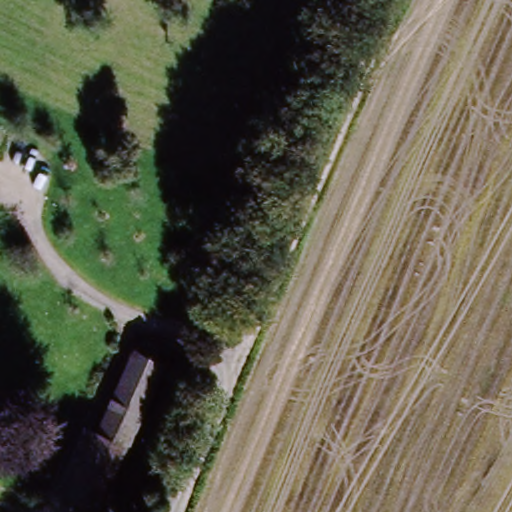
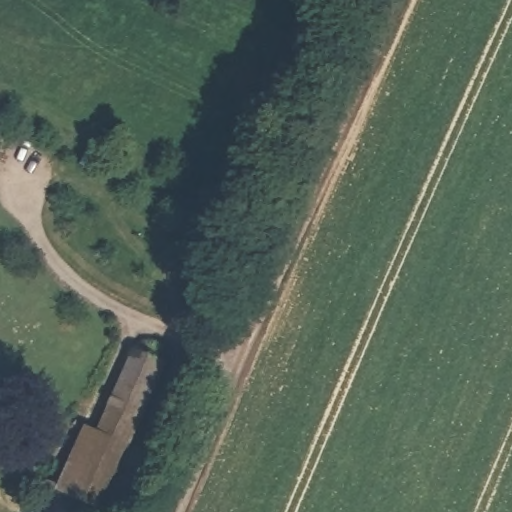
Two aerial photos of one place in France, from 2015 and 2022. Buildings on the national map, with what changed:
unchanged [(136,354),(166,368),(131,451),(100,436),(136,354)]
unchanged [(131,451),(108,508),(66,492),(91,432),(100,436),(131,451)]

